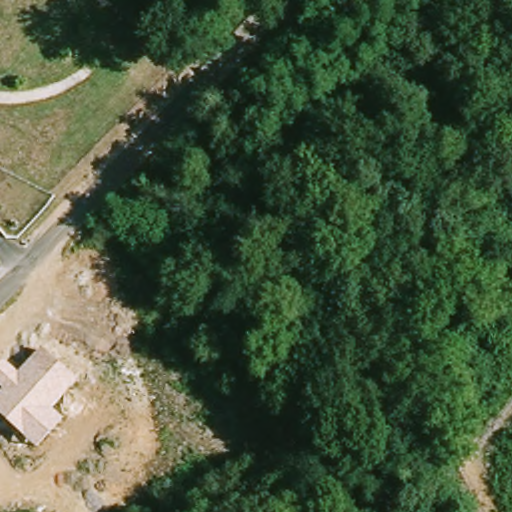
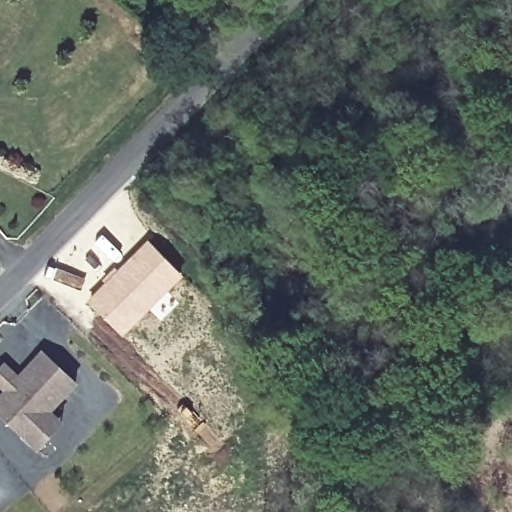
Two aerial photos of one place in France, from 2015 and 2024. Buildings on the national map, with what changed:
new [(154,238),(186,271),(129,329),(96,297),(154,238)]
unchanged [(54,410),(64,421),(38,450),(0,413),(0,395),(3,391),(0,388),(0,367),(5,361),(19,373),(41,349),(79,382),(54,410)]

